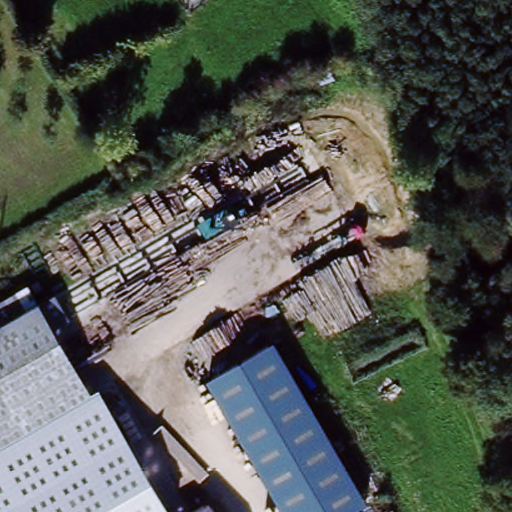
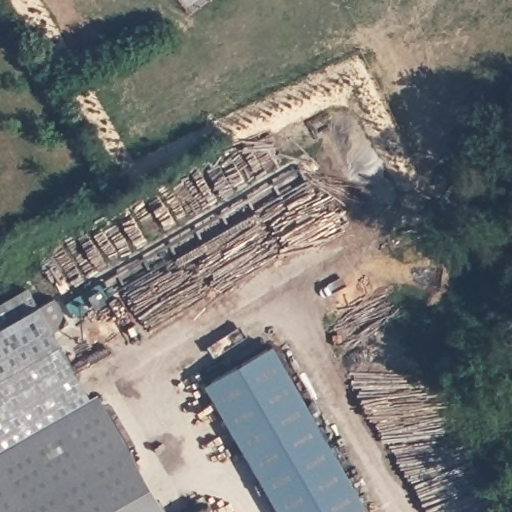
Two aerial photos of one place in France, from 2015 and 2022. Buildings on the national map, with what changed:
unchanged [(17,322),(6,303),(31,289),(42,308),(61,298),(76,326),(58,336),(97,407),(0,460),(0,332),(17,322)]
unchanged [(211,381),(275,346),(366,512),(282,512),(211,381)]
unchanged [(97,407),(90,394),(100,389),(170,512),(0,512),(0,460),(97,407)]
unchanged [(210,504),(214,512),(195,512),(210,504)]

